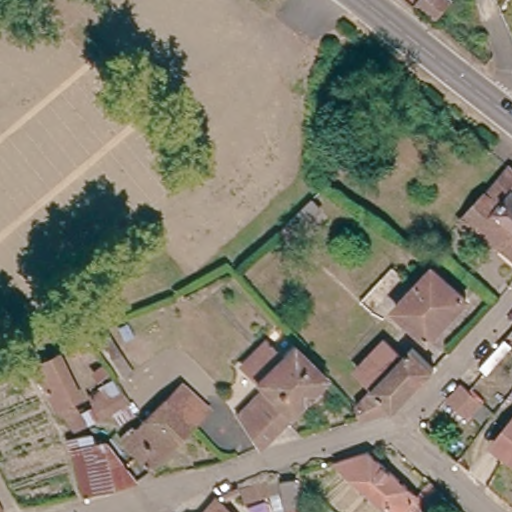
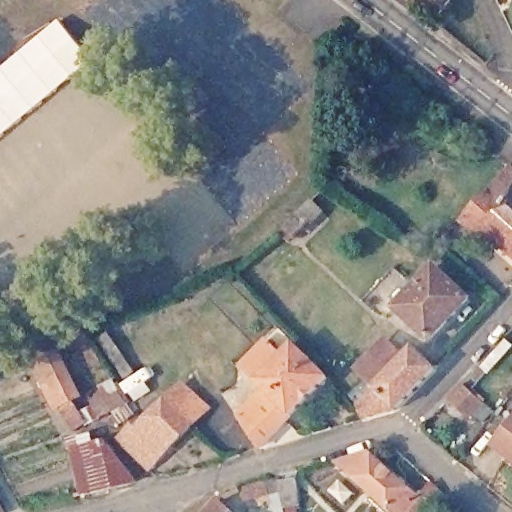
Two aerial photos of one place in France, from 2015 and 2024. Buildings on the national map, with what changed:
unchanged [(438,14),(420,0),(441,0),(446,4),(438,14)]
new [(91,60),(0,137),(0,68),(57,20),(91,60)]
unchanged [(462,217),(468,210),(512,162),(512,181),(509,184),(512,186),(512,251),(495,236),(488,242),(462,217)]
unchanged [(437,268),(470,300),(433,338),(400,308),(437,268)]
unchanged [(357,364),(384,336),(400,350),(373,379),(357,364)]
unchanged [(237,415),(266,387),(257,377),(258,376),(244,362),(267,338),(282,353),(295,341),(330,378),(292,415),(259,447),(248,431),(237,415)]
unchanged [(364,416),(363,416),(358,400),(412,341),(434,360),(393,402),(364,416)]
unchanged [(58,351),(77,390),(54,402),(34,362),(58,351)]
unchanged [(474,393),(455,412),(445,402),(463,383),(474,393)]
unchanged [(164,401),(183,384),(208,408),(190,426),(152,463),(126,438),(144,419),(164,401)]
unchanged [(494,445),(512,423),(512,459),(494,445)]
unchanged [(104,440),(136,482),(108,483),(106,483),(88,486),(77,446),(86,442),(90,448),(96,445),(104,440)]
unchanged [(406,512),(381,512),(326,460),(357,452),(403,495),(415,482),(428,493),(416,502),(406,512)]
unchanged [(287,477),(303,475),(306,494),(291,497),(287,477)]
unchanged [(270,478),(273,489),(248,495),(245,485),(270,478)]
demolished [(0,504),(0,483),(11,497),(0,504)]
unchanged [(0,507),(0,497),(5,505),(0,507)]
unchanged [(218,497),(233,512),(204,512),(218,497)]

